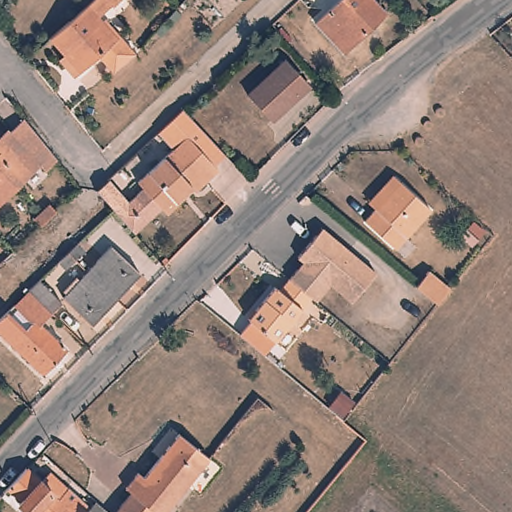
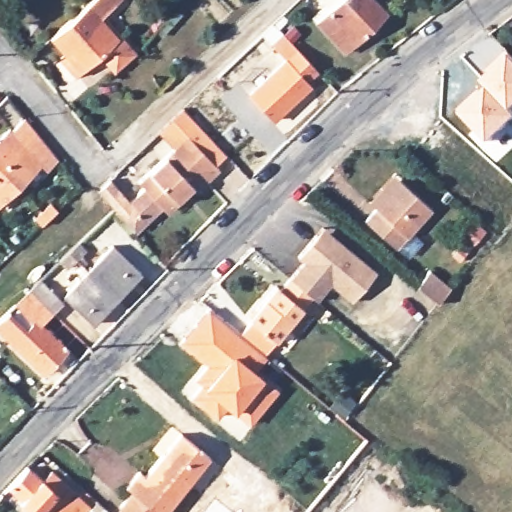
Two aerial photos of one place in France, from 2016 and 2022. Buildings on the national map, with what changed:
unchanged [(57,61),(63,57),(46,38),(89,0),(116,0),(109,6),(107,5),(94,17),(104,27),(115,40),(117,37),(125,46),(128,50),(134,56),(112,75),(106,68),(104,65),(96,56),(82,67),(71,76),(60,65),(57,61)]
unchanged [(373,0),(386,13),(345,51),(317,23),(342,0),(373,0)]
unchanged [(317,71),(305,82),(283,60),(270,45),(282,33),(317,71)]
new [(481,81),(510,53),(512,56),(512,110),(511,110),(512,112),(512,123),(488,145),(460,114),(487,87),(481,81)]
unchanged [(308,85),(271,120),(247,96),(283,60),(308,85)]
unchanged [(116,214),(114,211),(95,191),(106,180),(128,203),(144,188),(137,181),(176,144),(161,129),(180,111),(204,133),(225,153),(214,164),(217,168),(195,190),(191,186),(166,211),(160,205),(142,223),(134,231),(116,214)]
unchanged [(15,130),(35,155),(49,171),(36,182),(30,174),(0,200),(0,144),(15,130)]
unchanged [(403,257),(395,249),(364,222),(375,210),(367,203),(392,177),(398,182),(430,211),(406,238),(414,245),(403,257)]
unchanged [(40,214),(54,200),(61,207),(46,221),(40,214)]
unchanged [(330,285),(316,302),(311,298),(296,285),(295,284),(289,279),(303,262),(297,257),(320,228),(375,273),(351,302),(330,285)]
unchanged [(68,255),(77,246),(85,255),(75,263),(66,272),(59,264),(68,255)]
unchanged [(114,301),(87,274),(114,250),(140,276),(114,301)]
unchanged [(438,304),(415,286),(428,271),(450,289),(438,304)]
unchanged [(88,325),(62,298),(87,274),(114,301),(88,325)]
unchanged [(275,342),(249,320),(276,288),(280,290),(289,279),(295,284),(296,285),(311,298),(275,342)]
unchanged [(69,357),(45,380),(13,346),(35,326),(15,306),(29,294),(39,283),(60,305),(50,316),(40,326),(69,357)]
new [(275,342),(264,354),(266,357),(255,371),(277,389),(249,425),(226,406),(215,419),(190,397),(200,385),(193,380),(205,365),(178,342),(206,307),(237,334),(249,320),(275,342)]
unchanged [(132,492),(127,487),(140,473),(145,477),(180,436),(209,460),(165,512),(116,512),(132,492)]
unchanged [(19,504),(22,500),(10,490),(26,472),(27,474),(59,497),(65,491),(92,512),(28,512),(19,504)]
unchanged [(102,507),(108,512),(98,512),(102,507)]

